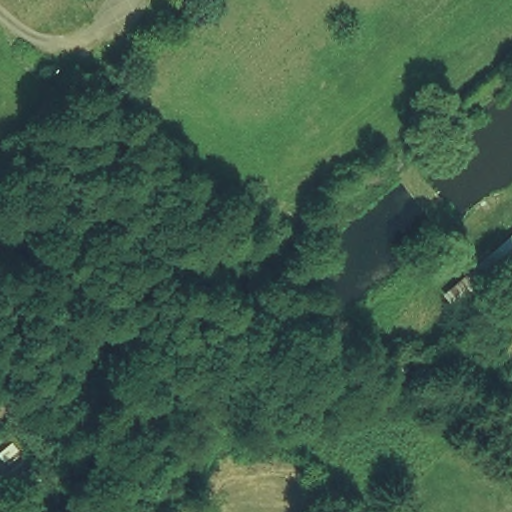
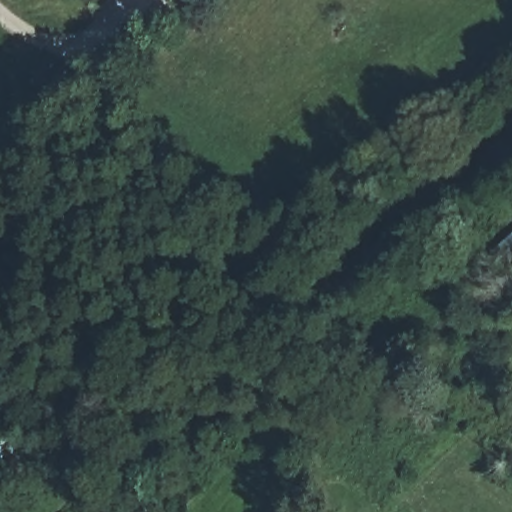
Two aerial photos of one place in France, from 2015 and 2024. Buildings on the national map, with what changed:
unchanged [(449,297),(512,243),(512,293),(473,326),(449,297)]

